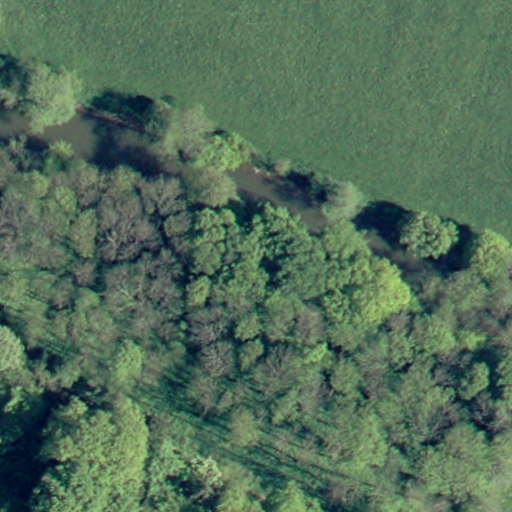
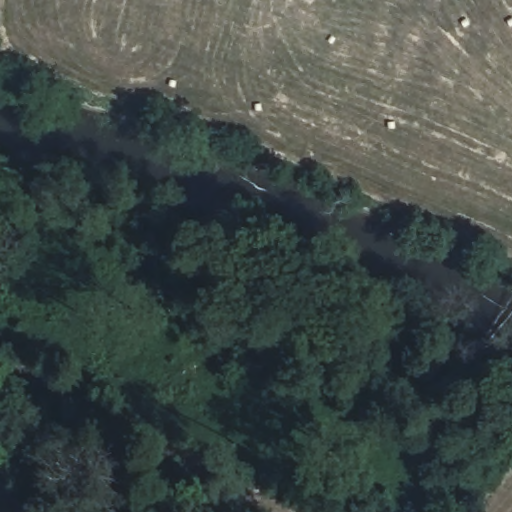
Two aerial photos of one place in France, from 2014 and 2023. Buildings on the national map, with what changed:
[]

